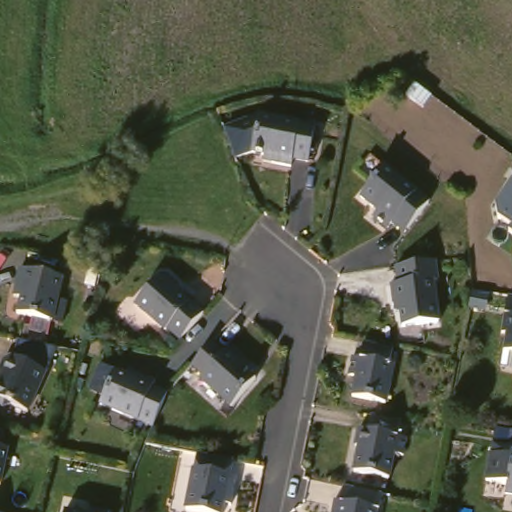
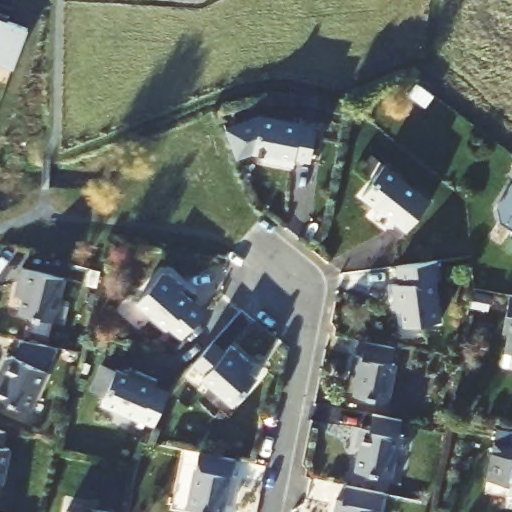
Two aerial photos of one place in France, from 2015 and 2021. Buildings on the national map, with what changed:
new [(27,28),(12,67),(0,62),(0,18),(27,28)]
unchanged [(318,127),(312,162),(297,159),(295,167),(267,162),(268,155),(256,153),(238,156),(225,128),(256,114),(262,117),(269,119),(318,127)]
unchanged [(391,165),(437,201),(413,230),(401,220),(397,226),(382,215),(386,210),(369,196),(380,182),(380,179),(391,165)]
unchanged [(512,185),(512,228),(493,219),(512,185)]
unchanged [(445,256),(447,275),(443,275),(448,316),(411,321),(408,298),(402,299),(400,280),(407,278),(405,261),(445,256)]
unchanged [(74,274),(64,317),(28,308),(32,293),(25,292),(32,264),(74,274)]
unchanged [(190,283),(186,288),(191,292),(214,312),(191,339),(177,327),(176,330),(146,303),(175,270),(190,283)]
unchanged [(239,340),(255,355),(256,365),(265,373),(241,400),(210,373),(213,370),(201,360),(221,336),(232,347),(239,340)]
unchanged [(402,342),(398,358),(402,359),(395,397),(361,390),(365,370),(357,369),(362,350),(369,352),(372,336),(402,342)]
unchanged [(25,340),(67,348),(29,412),(12,402),(5,403),(0,400),(0,380),(1,378),(4,377),(8,371),(5,369),(12,356),(19,355),(22,356),(25,340)]
unchanged [(140,377),(142,371),(169,382),(166,389),(181,395),(167,428),(114,405),(117,400),(102,393),(112,370),(127,376),(129,372),(140,377)]
unchanged [(405,416),(402,431),(412,434),(408,450),(400,448),(395,473),(359,466),(364,441),(361,441),(364,424),(372,426),(376,410),(405,416)]
unchanged [(14,431),(11,446),(17,448),(11,483),(0,481),(0,428),(14,431)]
unchanged [(232,454),(244,456),(241,472),(247,473),(241,501),(235,500),(232,512),(229,512),(196,505),(207,449),(232,454)]
unchanged [(501,458),(512,460),(512,488),(497,486),(501,458)]
unchanged [(343,496),(350,497),(353,482),(392,489),(388,506),(386,505),(384,512),(341,512),(343,496)]
unchanged [(117,511),(117,512),(98,512),(99,507),(117,511)]
unchanged [(19,511),(18,512),(0,512),(0,508),(19,511)]
unchanged [(73,510),(84,512),(72,512),(73,510)]

